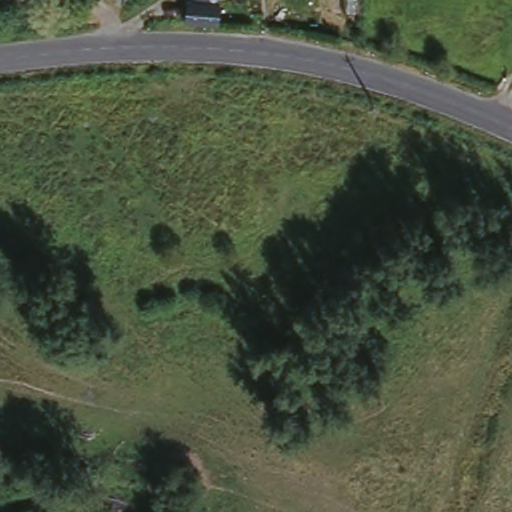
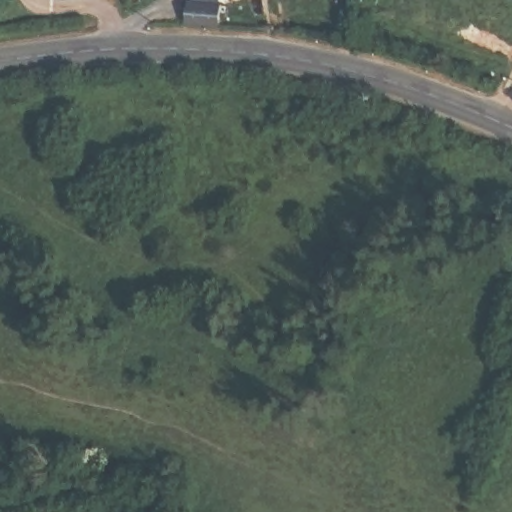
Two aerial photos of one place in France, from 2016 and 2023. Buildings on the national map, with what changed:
unchanged [(181,12),(183,0),(214,0),(211,15),(181,12)]

